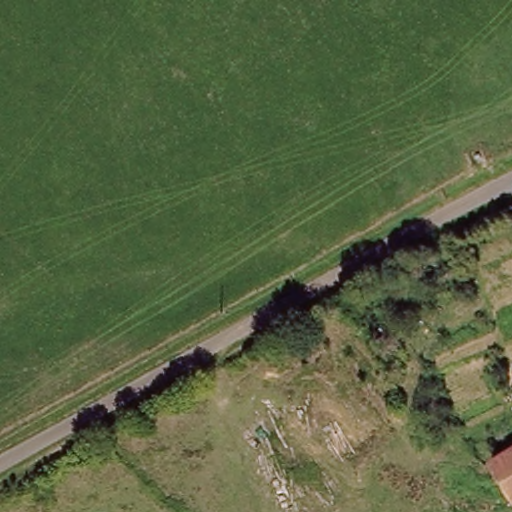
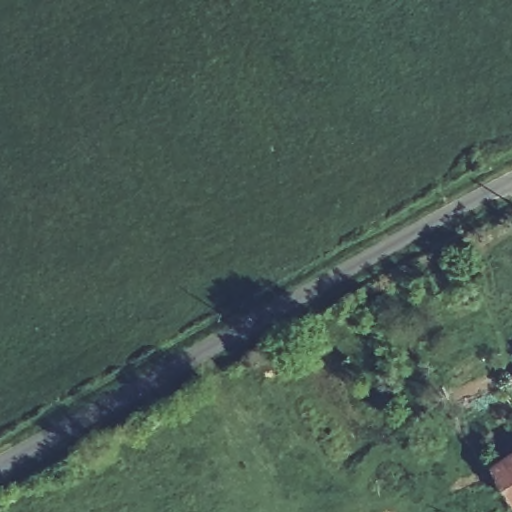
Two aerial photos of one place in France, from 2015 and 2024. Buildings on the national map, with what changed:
unchanged [(512,452),(512,500),(491,466),(512,452)]

